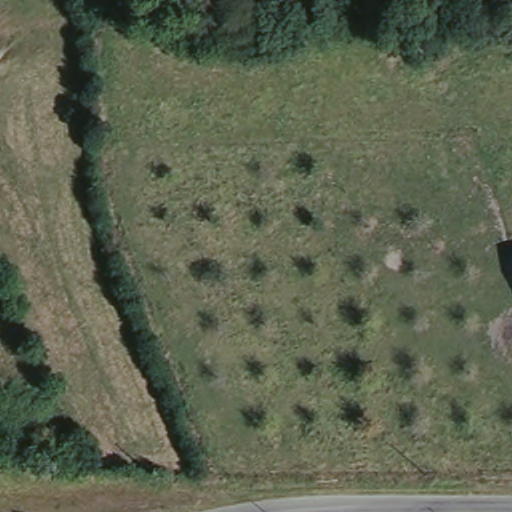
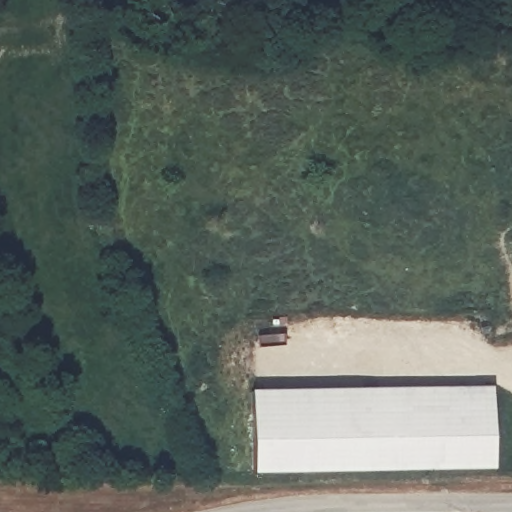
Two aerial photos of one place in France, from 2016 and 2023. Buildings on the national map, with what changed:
new [(254,474),(252,391),(494,386),(496,469),(254,474)]

